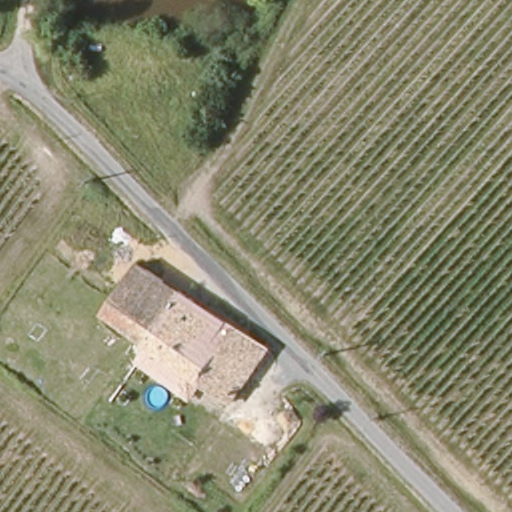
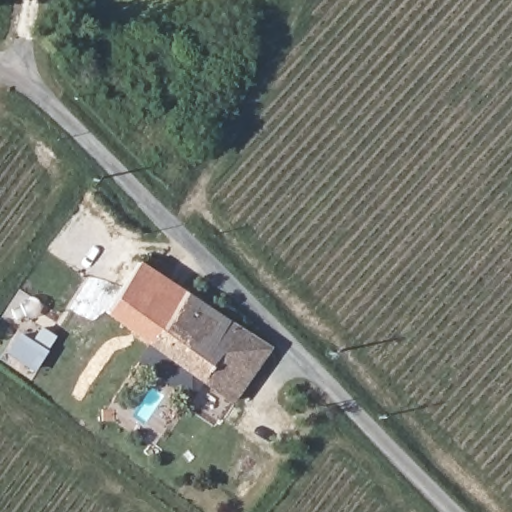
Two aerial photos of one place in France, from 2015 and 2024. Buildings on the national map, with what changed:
unchanged [(145,263),(270,349),(234,402),(110,314),(145,263)]

